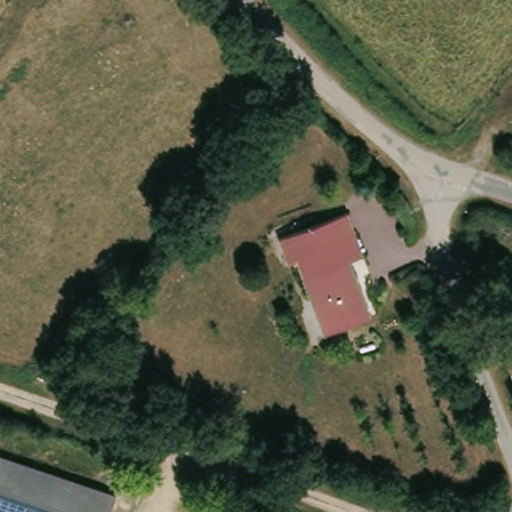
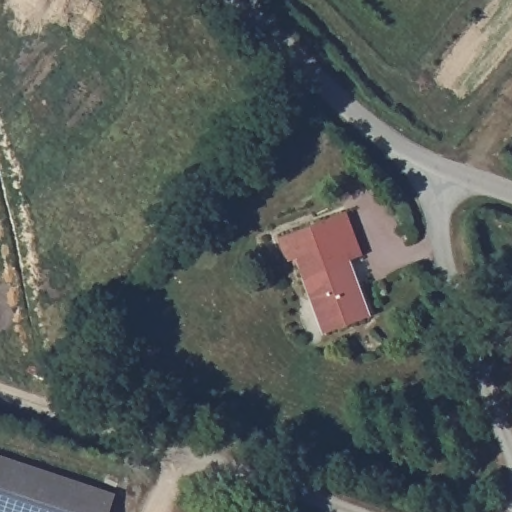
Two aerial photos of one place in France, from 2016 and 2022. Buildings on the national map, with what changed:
unchanged [(331,332),(307,262),(302,264),(300,258),(295,260),(287,236),(356,212),(364,236),(371,255),(357,260),(357,262),(362,274),(376,316),(331,332)]
unchanged [(507,367),(512,365),(512,380),(507,367)]
unchanged [(0,456),(117,494),(111,512),(0,512),(0,456)]

